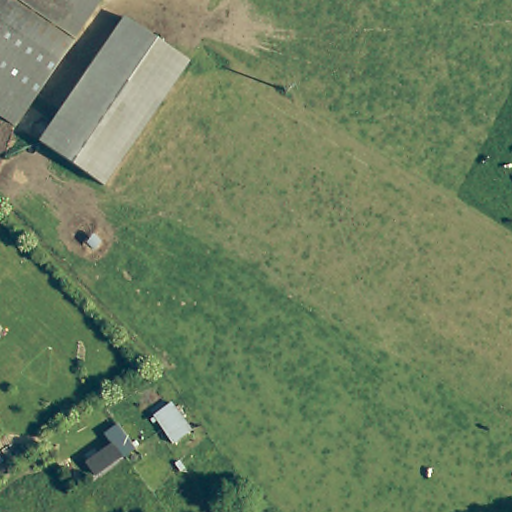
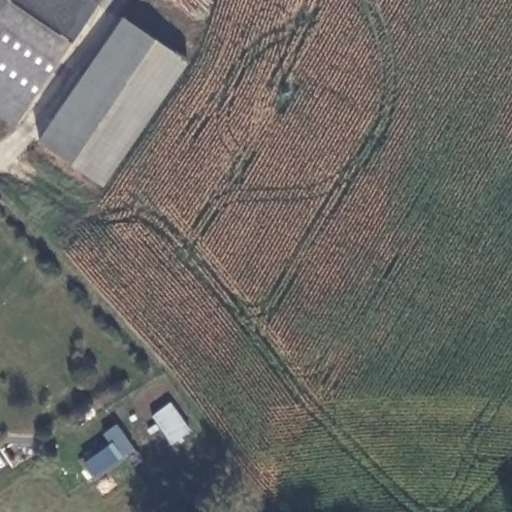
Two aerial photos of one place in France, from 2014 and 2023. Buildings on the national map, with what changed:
unchanged [(0,112),(0,0),(94,0),(13,121),(0,112)]
unchanged [(125,21),(184,60),(100,184),(38,142),(43,134),(121,18),(125,21)]

